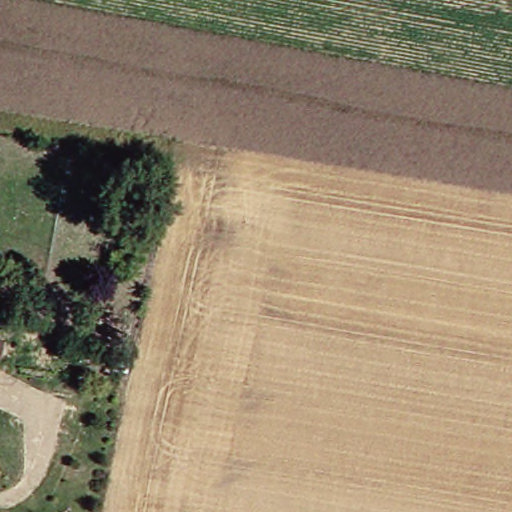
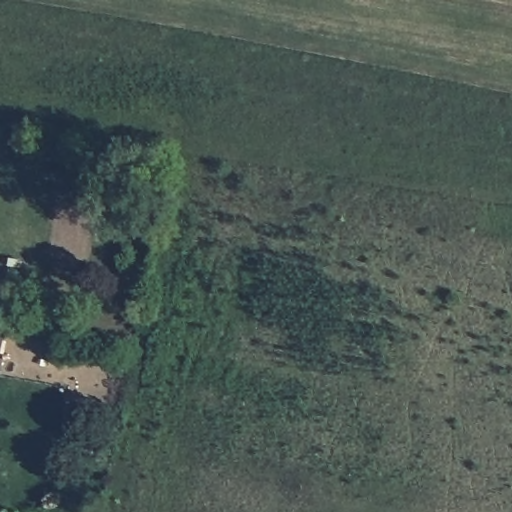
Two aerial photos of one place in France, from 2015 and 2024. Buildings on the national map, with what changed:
unchanged [(0,350),(0,334),(18,337),(14,353),(0,350)]

